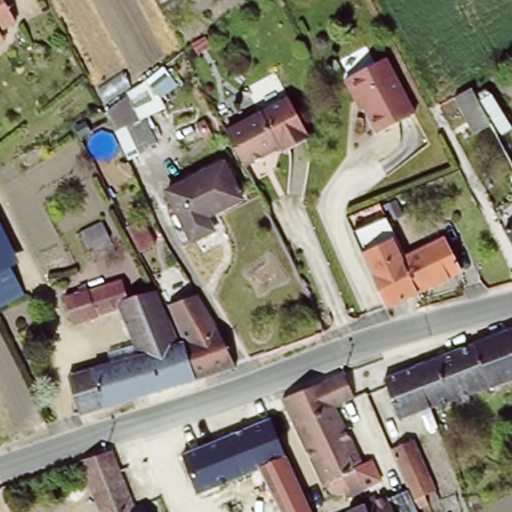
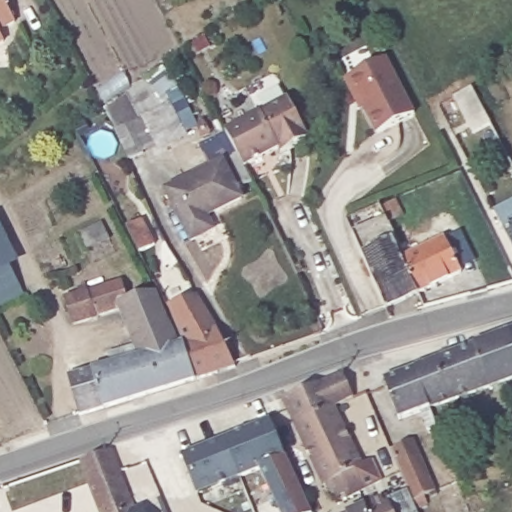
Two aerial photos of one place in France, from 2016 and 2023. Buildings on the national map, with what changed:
unchanged [(14,16),(0,24),(0,0),(5,0),(14,16)]
unchanged [(0,40),(0,31),(0,32),(4,38),(0,40)]
unchanged [(385,56),(413,110),(377,129),(358,95),(355,97),(343,77),(385,56)]
unchanged [(507,127),(498,130),(493,120),(483,124),(466,87),(485,77),(507,127)]
unchanged [(287,95),(310,139),(245,169),(225,127),(287,95)]
unchanged [(133,118),(146,143),(131,150),(118,125),(133,118)]
unchanged [(225,164),(243,200),(207,219),(215,232),(192,243),(168,193),(225,164)]
unchanged [(350,224),(370,216),(377,230),(387,225),(402,257),(446,236),(462,270),(386,306),(350,224)]
unchanged [(512,229),(512,258),(500,235),(512,229)]
unchanged [(4,266),(0,258),(0,231),(16,266),(6,270),(21,297),(0,307),(0,268),(4,266)]
unchanged [(4,266),(0,268),(0,258),(4,266)]
unchanged [(102,411),(100,407),(80,414),(70,381),(80,378),(80,376),(93,371),(93,368),(131,355),(118,312),(73,326),(65,300),(125,281),(133,302),(160,294),(178,347),(185,345),(198,381),(102,411)]
unchanged [(185,345),(172,308),(200,297),(202,300),(220,333),(231,360),(236,371),(198,381),(185,345)]
unchanged [(512,332),(512,357),(503,336),(512,332)]
unchanged [(503,336),(512,357),(512,381),(427,414),(412,371),(503,336)]
unchanged [(396,426),(378,384),(412,371),(427,414),(396,426)]
unchanged [(345,378),(355,401),(336,410),(312,422),(297,429),(284,400),(345,378)]
unchanged [(336,410),(364,469),(372,465),(381,486),(366,492),(357,473),(343,479),(327,447),(325,448),(312,422),(336,410)]
unchanged [(197,493),(180,453),(270,417),(310,512),(284,512),(266,467),(197,493)]
unchanged [(312,422),(325,448),(327,447),(343,479),(357,473),(366,492),(360,495),(354,497),(352,494),(336,500),(329,488),(326,490),(297,429),(312,422)]
unchanged [(409,492),(390,449),(415,439),(437,491),(426,496),(429,504),(417,510),(409,492)]
unchanged [(140,507),(142,512),(96,512),(78,467),(108,457),(130,510),(140,507)]
unchanged [(388,495),(391,500),(409,492),(417,510),(418,512),(369,512),(366,505),(388,495)]
unchanged [(369,512),(350,512),(366,505),(369,512)]
unchanged [(316,512),(312,512),(316,511),(316,512)]

